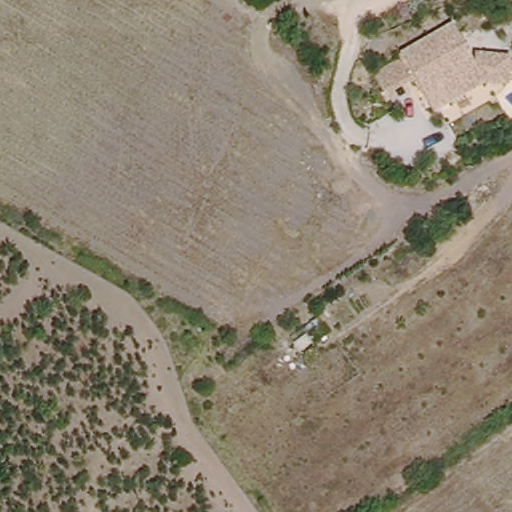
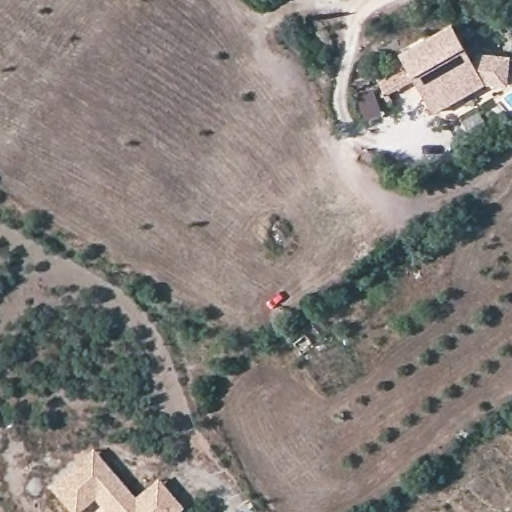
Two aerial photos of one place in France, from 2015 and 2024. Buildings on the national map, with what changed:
unchanged [(414,84),(408,65),(377,76),(370,56),(401,46),(399,42),(454,25),(466,63),(469,53),(502,64),(494,91),(473,84),(439,93),(418,99),(414,84)]
new [(84,499),(70,511),(47,483),(79,456),(90,447),(99,459),(144,512),(95,512),(84,499)]

